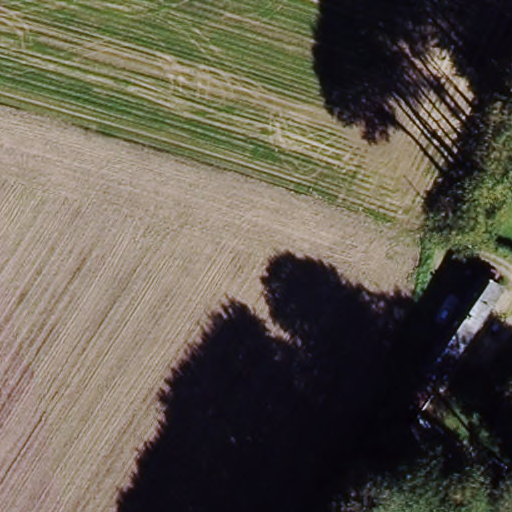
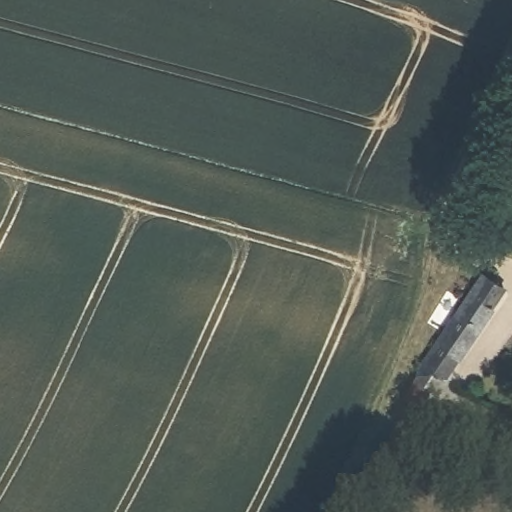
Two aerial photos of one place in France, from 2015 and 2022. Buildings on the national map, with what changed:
unchanged [(498,149),(512,155),(512,157),(501,182),(495,195),(482,189),(487,176),(498,149)]
unchanged [(437,385),(412,368),(478,272),(504,289),(437,385)]
unchanged [(470,459),(447,442),(419,424),(432,405),(460,423),(483,440),(470,459)]

